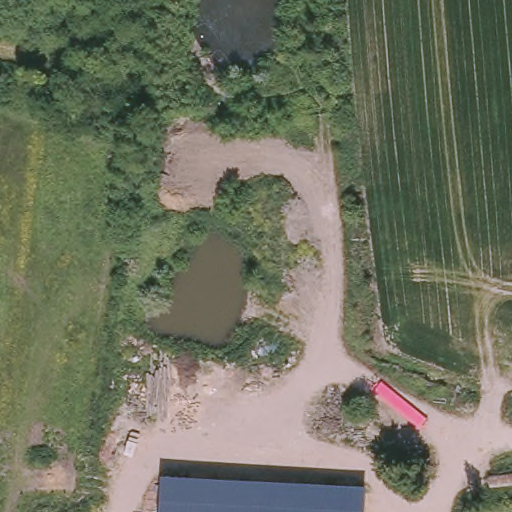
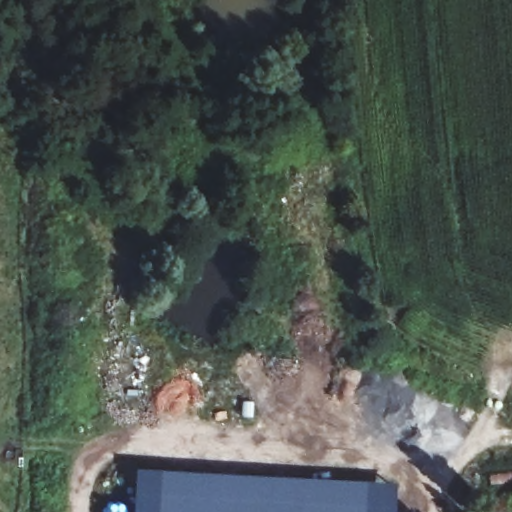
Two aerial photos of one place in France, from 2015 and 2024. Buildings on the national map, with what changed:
unchanged [(365,483),(364,512),(160,512),(161,474),(365,483)]
new [(395,485),(392,512),(364,512),(365,483),(395,485)]

